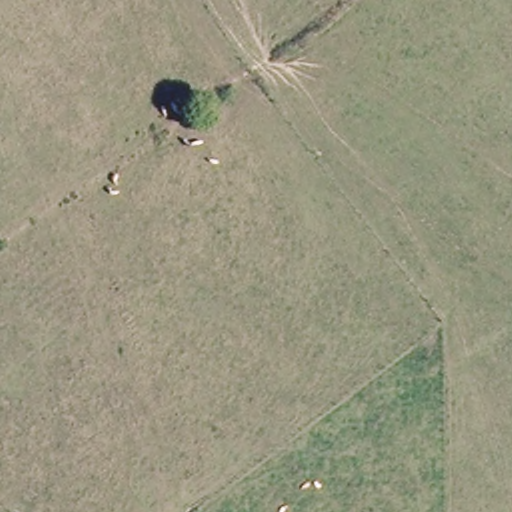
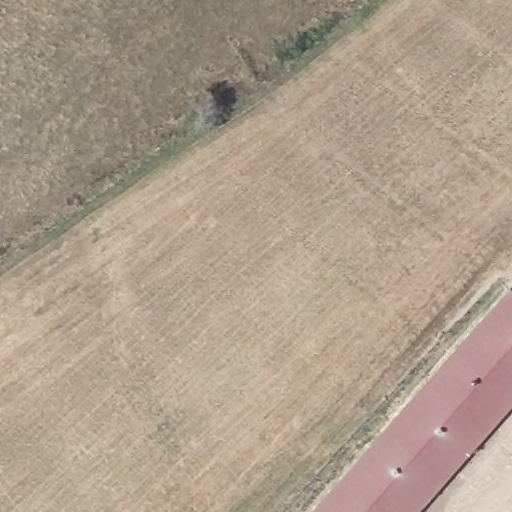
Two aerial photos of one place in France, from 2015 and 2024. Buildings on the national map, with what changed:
new [(512,294),(512,405),(417,512),(317,512),(511,292),(512,294)]
new [(512,412),(424,512),(417,512),(512,405),(512,412)]

